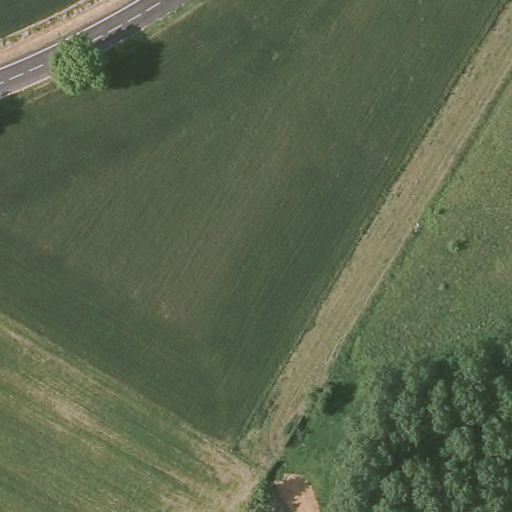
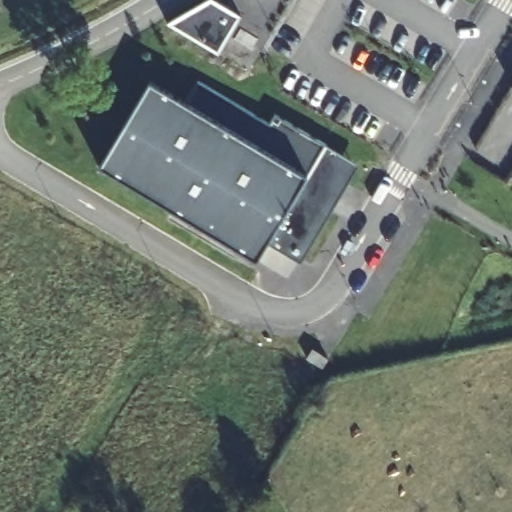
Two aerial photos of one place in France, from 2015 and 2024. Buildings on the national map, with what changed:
new [(207,0),(217,0),(241,14),(218,52),(168,22),(207,0)]
new [(185,100),(198,79),(270,121),(275,112),(326,142),(324,146),(345,158),(336,176),(342,179),(325,206),(329,208),(300,255),(270,238),(257,259),(100,165),(150,80),(185,100)]

